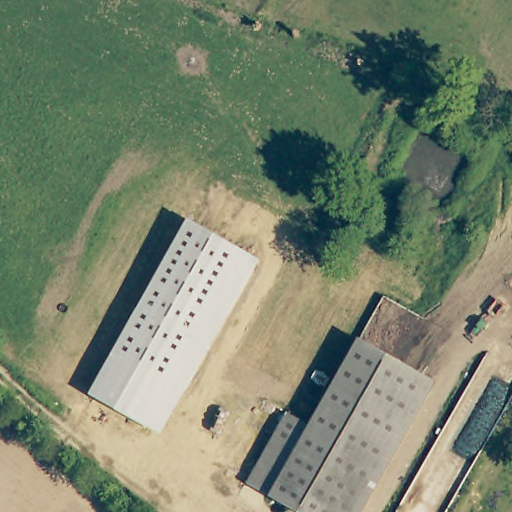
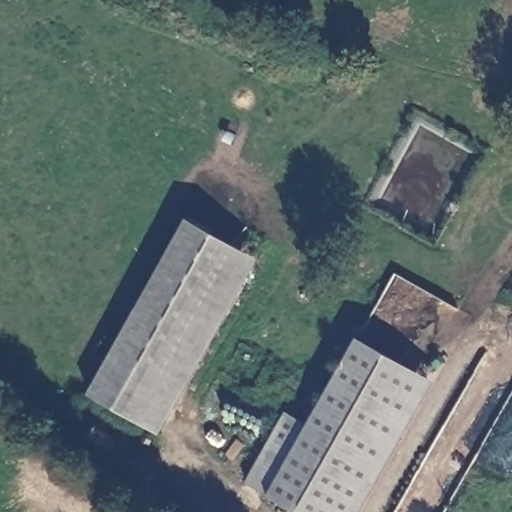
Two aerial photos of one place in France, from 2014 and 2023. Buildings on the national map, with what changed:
unchanged [(88,394),(187,217),(261,259),(161,436),(88,394)]
unchanged [(357,335),(416,370),(336,512),(305,512),(317,487),(282,468),(306,424),(357,335)]
unchanged [(283,412),(306,424),(282,468),(317,487),(305,512),(295,512),(244,484),(283,412)]

